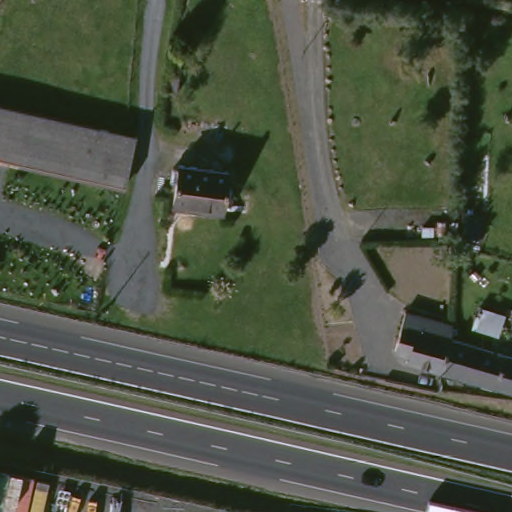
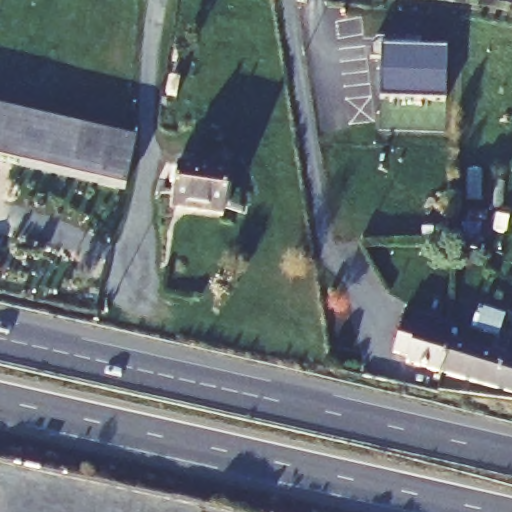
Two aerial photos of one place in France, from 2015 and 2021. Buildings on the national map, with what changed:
new [(379,47),(444,48),(443,99),(378,97),(379,47)]
unchanged [(138,136),(127,184),(0,154),(0,103),(138,136)]
unchanged [(234,169),(228,205),(175,197),(181,161),(234,169)]
unchanged [(444,370),(393,355),(408,308),(453,322),(452,339),(444,370)]
unchanged [(444,370),(452,339),(486,348),(489,337),(512,344),(512,395),(487,383),(444,370)]

